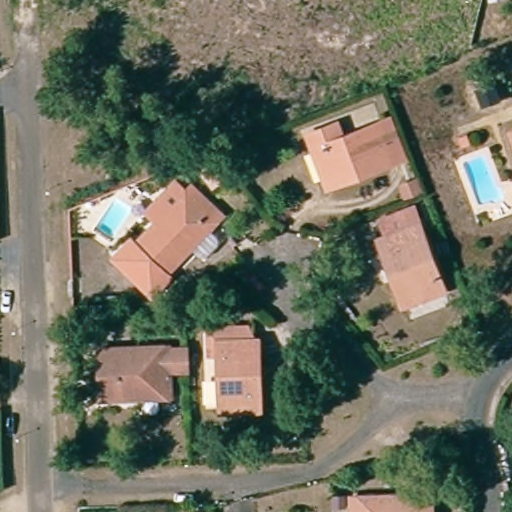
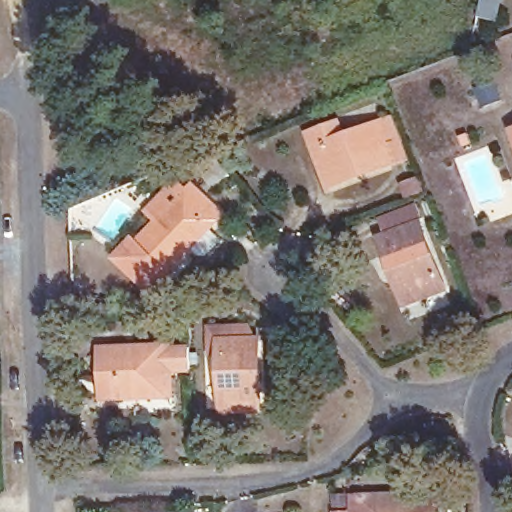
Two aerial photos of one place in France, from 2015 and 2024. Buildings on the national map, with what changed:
unchanged [(324,186),(306,139),(337,128),(343,140),(370,129),(387,123),(403,163),(386,170),(352,184),(327,195),(324,186)]
unchanged [(234,138),(245,167),(228,174),(216,145),(234,138)]
unchanged [(133,245),(188,186),(218,214),(205,228),(214,237),(215,244),(203,257),(196,257),(186,248),(163,273),(133,245)]
unchanged [(394,309),(384,282),(369,242),(376,240),(370,221),(414,205),(421,222),(447,288),(394,309)]
unchanged [(244,317),(256,334),(259,404),(223,404),(220,352),(204,352),(203,319),(226,318),(244,317)]
unchanged [(98,387),(96,350),(186,347),(188,373),(168,375),(169,398),(143,399),(98,402),(98,387)]
unchanged [(431,492),(432,512),(353,512),(352,495),(431,492)]

